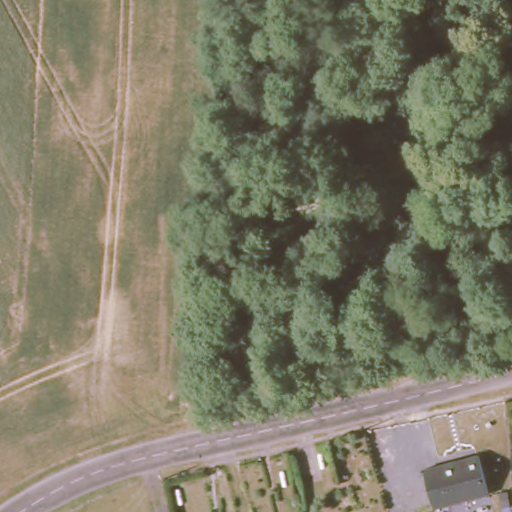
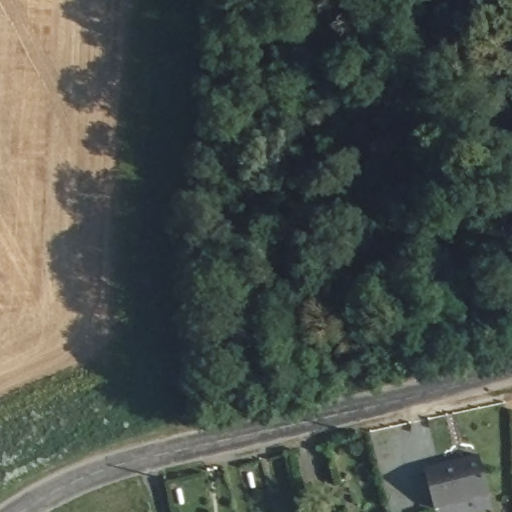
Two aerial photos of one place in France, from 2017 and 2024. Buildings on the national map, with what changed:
unchanged [(437,286),(418,288),(415,269),(435,267),(437,286)]
unchanged [(430,497),(422,470),(432,468),(478,456),(485,483),(488,495),(450,504),(442,507),(433,509),(430,497)]

